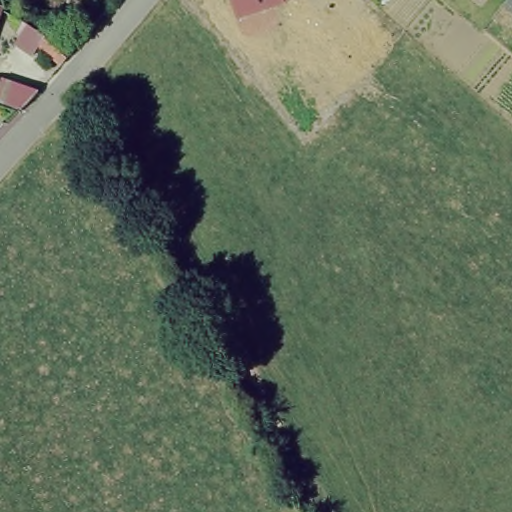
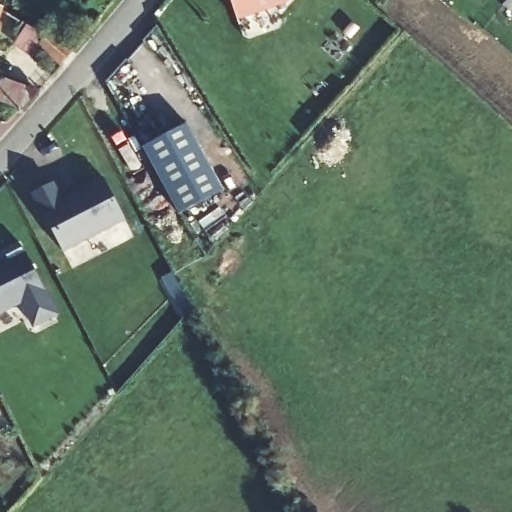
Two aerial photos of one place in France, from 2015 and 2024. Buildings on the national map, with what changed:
unchanged [(236,21),(229,0),(291,0),(287,4),(236,21)]
unchanged [(506,0),(512,0),(512,5),(506,0)]
unchanged [(22,11),(87,32),(78,41),(19,23),(22,11)]
new [(38,45),(30,55),(14,45),(27,23),(43,36),(48,30),(73,51),(61,66),(38,45)]
unchanged [(22,105),(0,98),(0,75),(38,86),(22,105)]
new [(224,190),(180,214),(144,147),(187,124),(224,190)]
new [(55,182),(63,199),(104,178),(126,221),(65,253),(33,193),(55,182)]
new [(34,329),(21,305),(0,314),(0,261),(23,248),(60,315),(34,329)]

